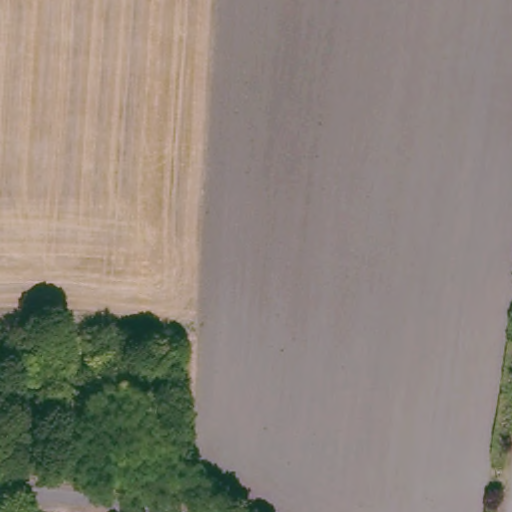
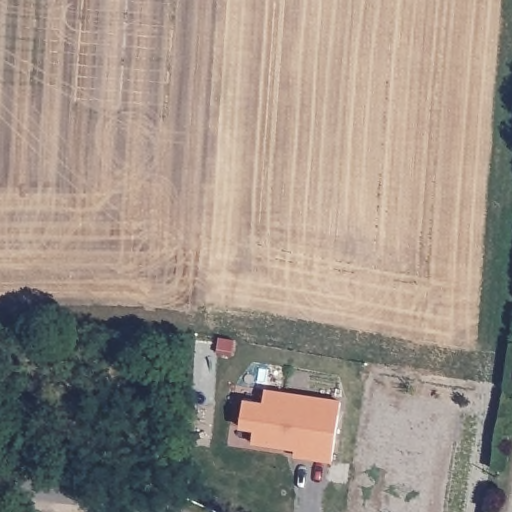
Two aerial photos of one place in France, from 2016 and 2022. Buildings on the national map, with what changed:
new [(295,449),(255,444),(256,431),(241,429),(245,400),(265,402),(266,389),(342,400),(334,462),(294,458),(295,449)]

